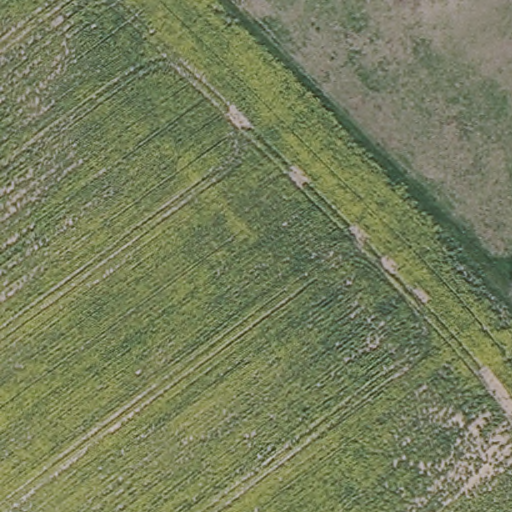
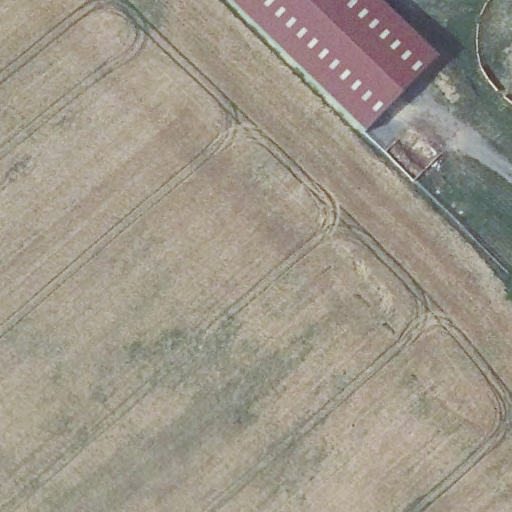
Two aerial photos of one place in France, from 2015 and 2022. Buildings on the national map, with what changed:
new [(436,59),(363,133),(226,0),(375,0),(436,59)]

